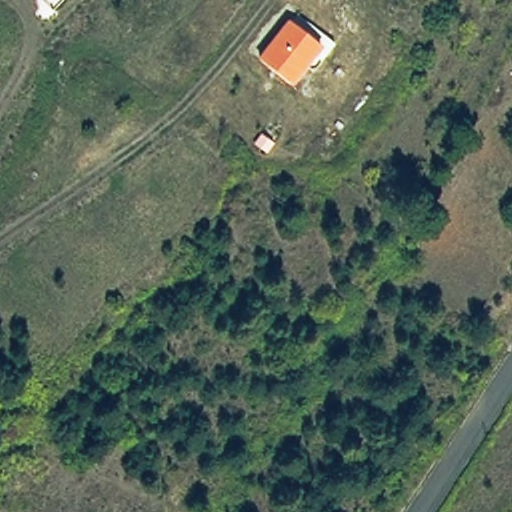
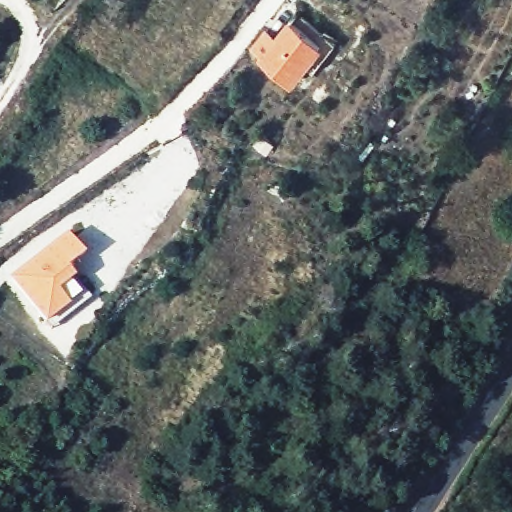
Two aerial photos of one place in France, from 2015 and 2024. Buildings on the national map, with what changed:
unchanged [(295,90),(256,59),(289,20),(325,48),(295,90)]
new [(45,324),(10,277),(68,232),(85,252),(66,267),(73,277),(57,290),(68,306),(45,324)]

